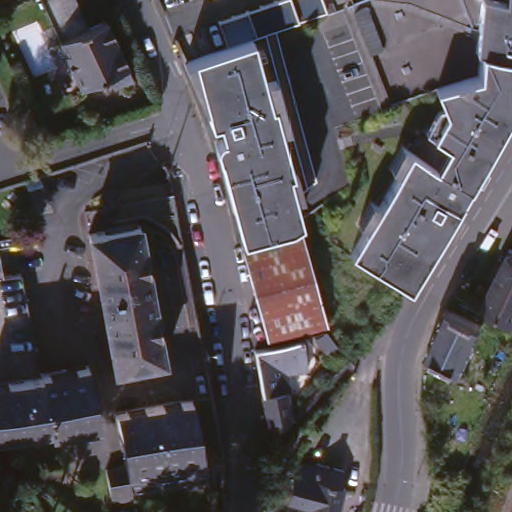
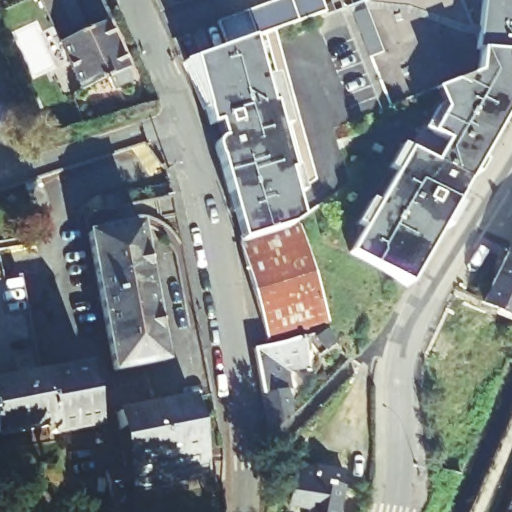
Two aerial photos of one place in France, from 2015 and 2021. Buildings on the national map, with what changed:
unchanged [(112,26),(135,73),(139,82),(119,92),(114,82),(89,94),(68,50),(61,54),(57,46),(64,42),(44,0),(78,0),(94,34),(112,26)]
unchanged [(168,0),(204,0),(170,12),(168,0)]
unchanged [(483,55),(478,77),(436,93),(382,113),(343,11),(330,16),(327,11),(276,29),(227,45),(219,20),(277,0),(512,0),(512,60),(483,55)]
unchanged [(276,29),(317,185),(295,202),(301,226),(290,232),(242,245),(212,139),(207,121),(182,60),(192,57),(227,45),(276,29)]
unchanged [(428,163),(442,140),(426,130),(441,105),(436,93),(478,77),(483,55),(512,60),(512,105),(405,284),(345,250),(402,149),(428,163)]
unchanged [(147,215),(144,192),(170,187),(175,210),(147,215)]
unchanged [(112,370),(86,235),(136,224),(162,360),(112,370)]
unchanged [(290,232),(301,226),(329,330),(270,345),(242,245),(290,232)]
unchanged [(511,254),(512,255),(512,322),(482,307),(511,254)]
unchanged [(22,275),(40,370),(89,363),(99,425),(53,433),(52,426),(0,434),(0,278),(3,278),(22,275)]
unchanged [(481,330),(459,375),(428,360),(421,356),(425,347),(443,311),(481,330)]
unchanged [(330,337),(340,350),(325,361),(311,342),(330,337)]
unchanged [(287,348),(302,345),(310,373),(288,378),(290,393),(287,395),(293,418),(270,433),(263,398),(257,354),(271,351),(287,348)]
unchanged [(130,486),(132,500),(112,503),(107,471),(127,467),(120,410),(196,399),(206,472),(130,486)]
unchanged [(297,467),(317,471),(318,465),(345,471),(342,485),(343,486),(338,512),(289,512),(297,467)]

